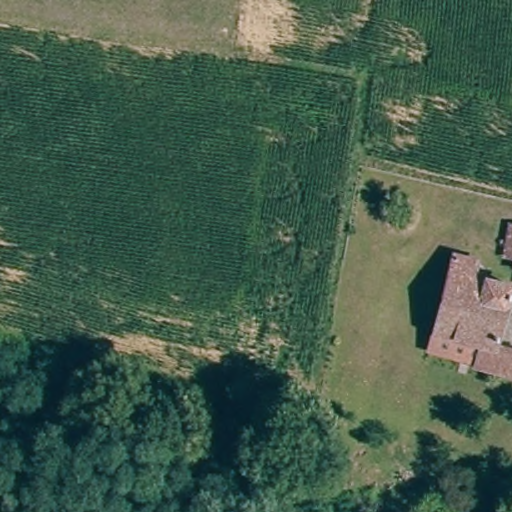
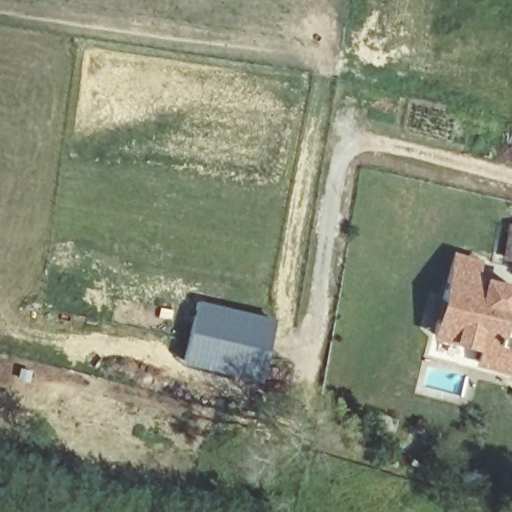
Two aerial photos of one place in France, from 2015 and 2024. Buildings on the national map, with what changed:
unchanged [(511,378),(511,372),(479,366),(481,352),(434,341),(453,257),(476,262),(472,277),(512,287),(495,351),(512,354),(512,378),(511,378)]
new [(276,319),(260,381),(184,362),(198,300),(276,319)]

